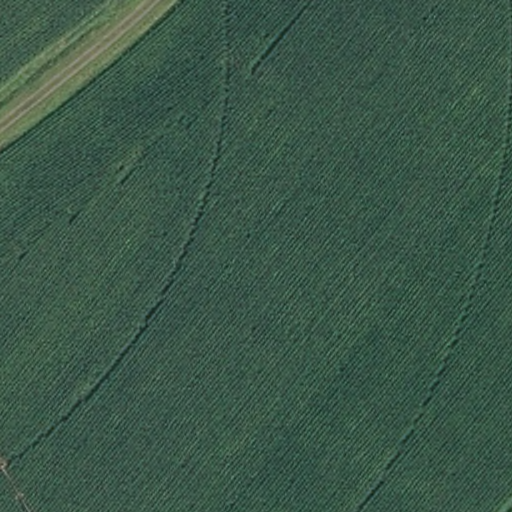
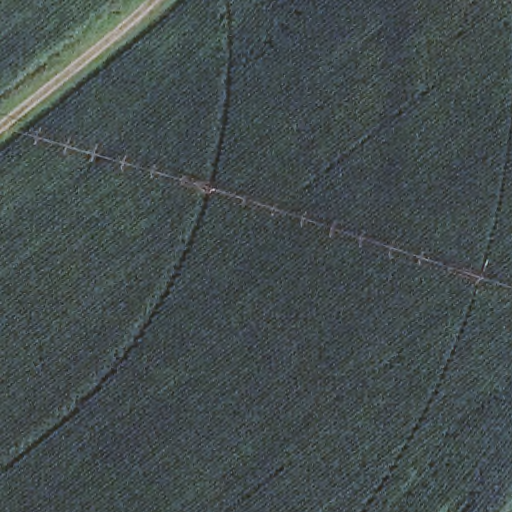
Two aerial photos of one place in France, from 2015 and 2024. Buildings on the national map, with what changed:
[]

